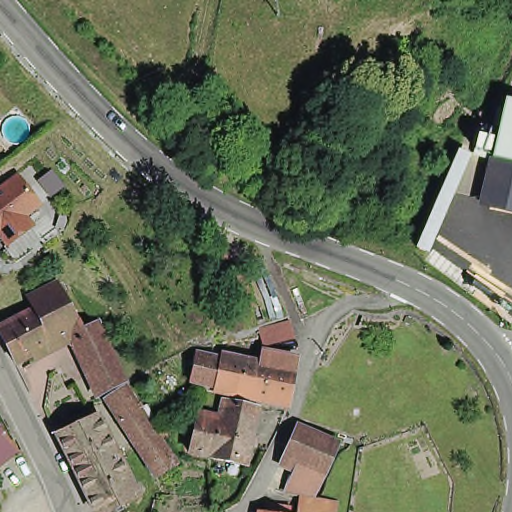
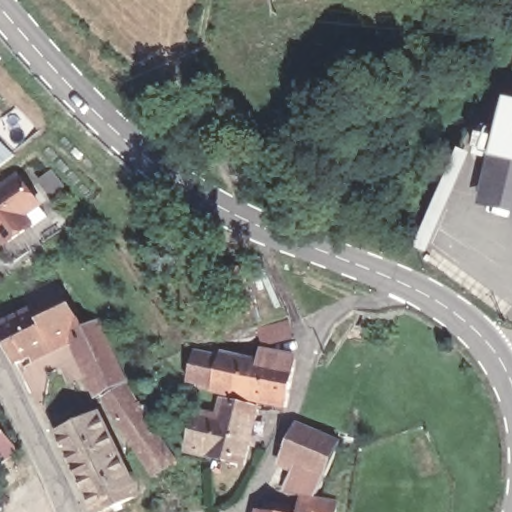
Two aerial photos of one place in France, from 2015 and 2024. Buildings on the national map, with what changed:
unchanged [(512,98),(512,213),(479,202),(490,153),(506,97),(512,98)]
unchanged [(427,256),(412,252),(464,149),(475,156),(427,256)]
unchanged [(29,216),(35,227),(7,247),(0,237),(0,185),(18,170),(44,205),(29,216)]
unchanged [(37,314),(33,306),(30,302),(52,293),(60,286),(84,335),(72,341),(54,350),(37,314)]
unchanged [(37,314),(54,350),(17,369),(0,334),(37,314)]
unchanged [(285,326),(289,342),(257,350),(254,333),(285,326)]
unchanged [(89,333),(100,327),(127,388),(100,400),(72,341),(84,335),(89,333)]
unchanged [(195,393),(185,391),(191,361),(202,363),(195,393)]
unchanged [(249,369),(240,406),(209,399),(197,397),(204,363),(215,366),(217,362),(249,369)]
unchanged [(240,406),(249,369),(265,372),(268,364),(294,369),(292,379),(282,416),(240,406)]
unchanged [(108,405),(128,394),(160,443),(177,469),(157,482),(141,458),(108,405)]
unchanged [(240,473),(185,459),(192,420),(212,424),(218,407),(253,415),(240,473)]
unchanged [(56,434),(96,415),(117,462),(77,480),(56,434)]
unchanged [(0,469),(0,438),(15,457),(0,469)]
unchanged [(321,488),(280,471),(292,438),(334,455),(332,462),(321,488)]
unchanged [(134,498),(105,512),(91,512),(77,480),(117,462),(134,498)]
unchanged [(299,507),(315,511),(316,512),(298,512),(299,507)]

